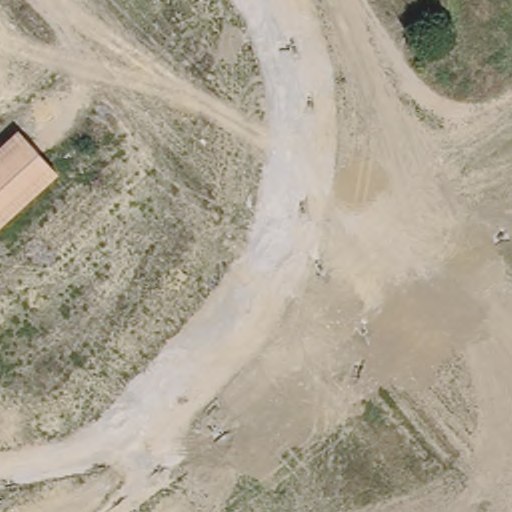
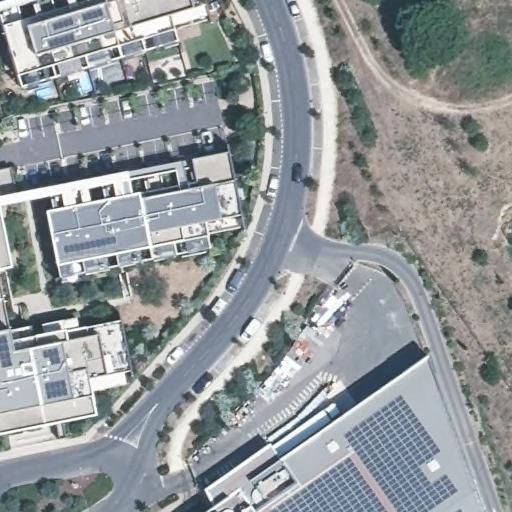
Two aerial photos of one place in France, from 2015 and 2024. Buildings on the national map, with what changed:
new [(33,0),(52,0),(55,11),(71,6),(69,0),(206,0),(208,6),(212,19),(175,30),(179,42),(22,88),(19,76),(4,26),(0,12),(0,2),(8,0),(33,0)]
demolished [(0,224),(0,144),(18,128),(58,172),(0,224)]
new [(229,154),(243,228),(206,234),(207,238),(208,251),(149,260),(59,277),(58,266),(47,212),(54,212),(51,196),(194,170),(193,161),(229,154)]
new [(17,195),(0,197),(0,170),(11,169),(17,195)]
new [(0,270),(0,200),(12,268),(0,270)]
new [(32,327),(35,337),(45,335),(42,325),(77,318),(79,329),(122,322),(131,370),(124,372),(127,386),(92,392),(97,416),(0,436),(0,282),(11,332),(32,327)]
new [(215,508),(205,490),(269,444),(279,458),(429,353),(484,512),(253,512),(251,508),(239,491),(215,508)]
new [(251,508),(253,512),(209,512),(239,491),(251,508)]
new [(321,512),(311,512),(318,507),(321,512)]

